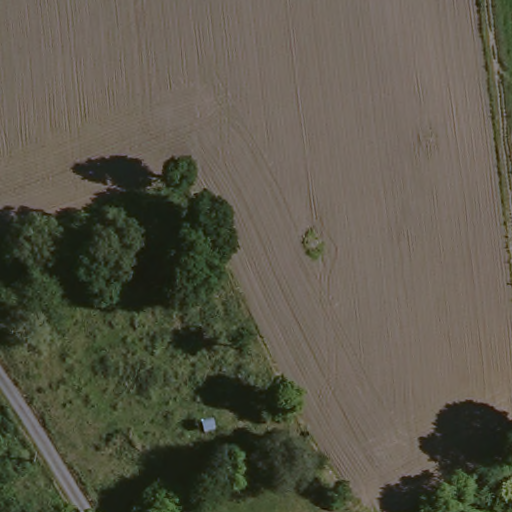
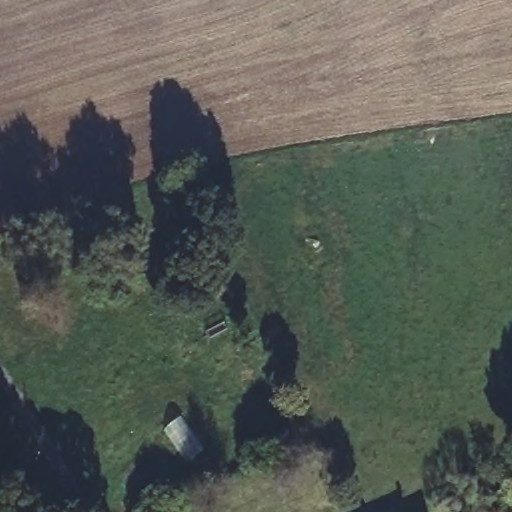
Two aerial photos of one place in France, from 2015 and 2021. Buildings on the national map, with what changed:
[]

